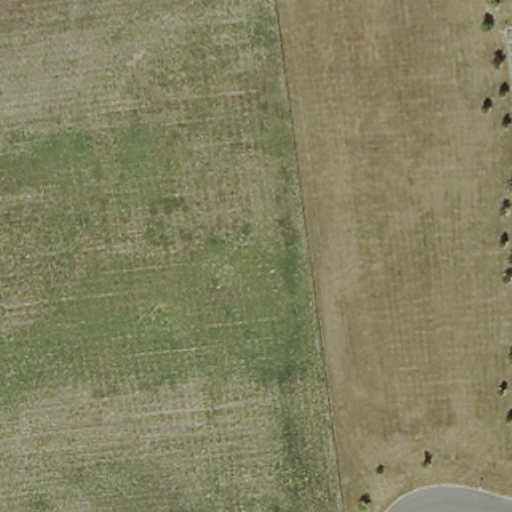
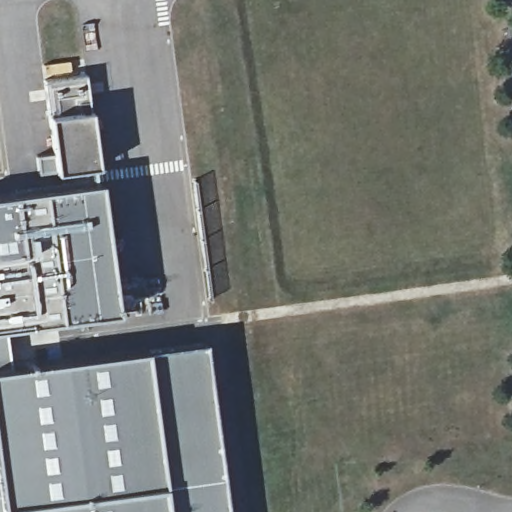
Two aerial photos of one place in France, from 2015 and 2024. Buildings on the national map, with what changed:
new [(69,187),(66,172),(57,173),(49,117),(45,81),(84,75),(89,112),(98,167),(91,169),(94,185),(101,184),(116,315),(3,330),(10,370),(144,352),(203,345),(226,512),(0,512),(0,197),(69,187)]

